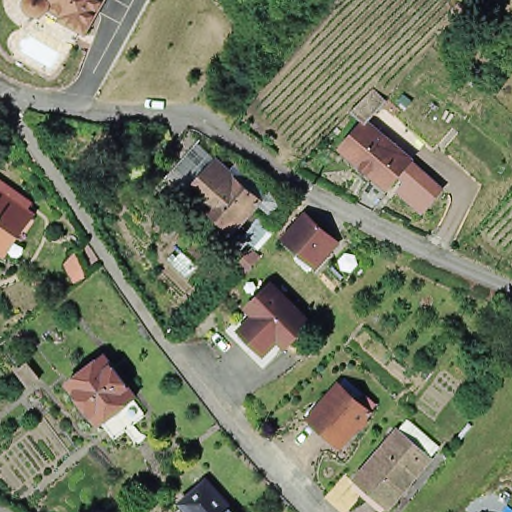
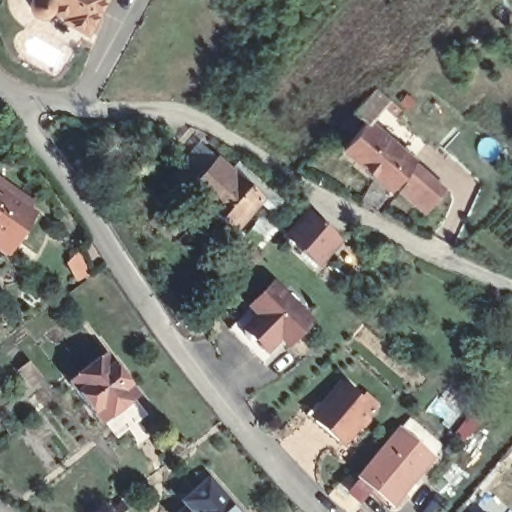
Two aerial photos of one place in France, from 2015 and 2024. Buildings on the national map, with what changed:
unchanged [(94,35),(72,22),(74,20),(58,10),(57,11),(57,12),(57,13),(56,14),(55,15),(54,16),(52,17),(51,17),(50,17),(50,18),(49,18),(48,18),(47,18),(45,18),(44,18),(44,17),(42,17),(41,16),(40,16),(40,15),(39,15),(38,14),(37,14),(37,13),(37,12),(37,11),(36,10),(36,9),(35,9),(35,7),(35,6),(35,5),(36,5),(36,4),(37,3),(37,2),(37,1),(37,0),(38,0),(114,0),(111,5),(105,15),(94,35)]
unchanged [(393,190),(348,151),(370,126),(358,115),(381,91),(392,104),(372,123),(416,163),(393,190)]
unchanged [(177,194),(205,162),(216,171),(223,164),(270,203),(259,215),(247,205),(222,234),(177,194)]
unchanged [(425,172),(426,172),(447,193),(425,215),(406,195),(404,193),(425,172)]
unchanged [(7,246),(0,241),(0,183),(34,206),(7,246)]
unchanged [(387,200),(379,211),(362,204),(370,191),(387,200)]
unchanged [(189,224),(178,235),(160,217),(170,206),(189,224)]
unchanged [(342,242),(330,255),(332,258),(321,271),(288,241),(292,236),(311,215),(342,242)]
unchanged [(228,280),(182,239),(193,227),(239,268),(228,280)]
unchanged [(277,280),(314,316),(292,338),(255,302),(277,280)]
unchanged [(292,338),(270,360),(233,323),(255,302),(292,338)]
unchanged [(100,425),(88,408),(85,411),(54,370),(90,341),(122,382),(120,384),(132,402),(100,425)]
unchanged [(25,367),(12,351),(22,343),(35,359),(25,367)]
unchanged [(317,415),(340,388),(371,415),(345,445),(329,432),(314,418),(317,415)]
unchanged [(385,509),(355,480),(394,435),(404,424),(434,451),(425,462),(426,463),(385,509)]
unchanged [(342,477),(362,495),(347,512),(336,512),(322,500),(330,492),(342,477)]
unchanged [(187,512),(184,507),(192,500),(208,486),(230,512),(187,512)]

